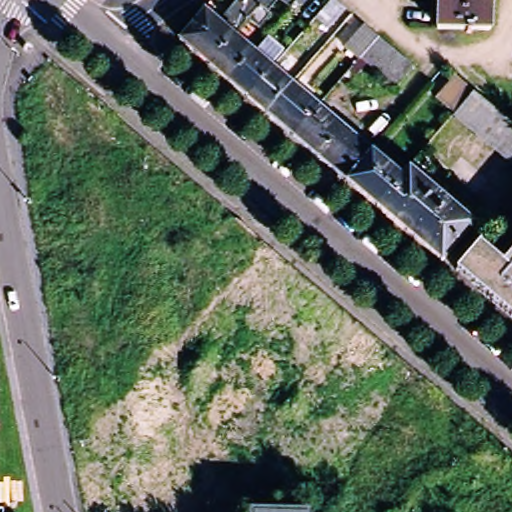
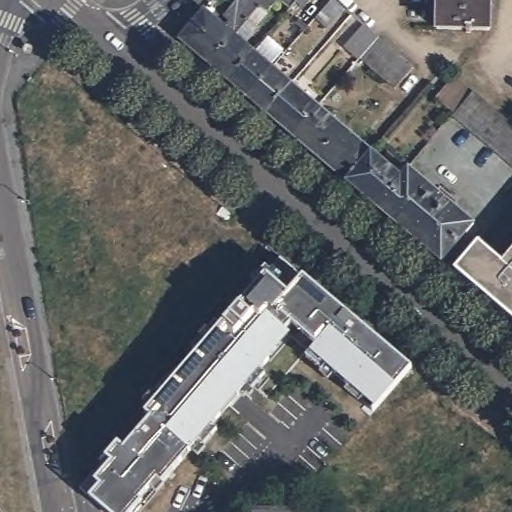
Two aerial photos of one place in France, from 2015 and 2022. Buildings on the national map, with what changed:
unchanged [(234,34),(225,45),(208,64),(191,50),(178,39),(198,15),(204,8),(224,25),(229,19),(223,14),(235,0),(275,0),(266,11),(269,14),(256,29),(246,20),(234,34)]
unchanged [(296,1),(289,9),(278,0),(306,0),(301,5),(296,1)]
unchanged [(314,17),(328,0),(335,0),(344,8),(327,28),(314,17)]
unchanged [(470,33),(466,32),(466,29),(436,27),(437,0),(489,0),(488,29),(470,29),(470,33)]
unchanged [(349,56),(348,59),(334,47),(353,24),(367,35),(402,65),(384,86),(349,56)]
unchanged [(228,81),(208,64),(225,45),(234,34),(254,50),(273,66),(291,82),(265,113),(246,96),(228,81)]
unchanged [(429,98),(449,74),(468,90),(509,126),(512,129),(512,168),(448,114),(429,98)]
unchanged [(265,113),(291,82),(318,104),(291,135),(265,113)]
unchanged [(291,135),(318,104),(371,149),(344,180),(291,135)]
unchanged [(344,180),(371,149),(401,175),(374,205),(344,180)]
unchanged [(374,205),(401,175),(407,168),(472,223),(439,260),(374,205)]
unchanged [(476,243),(499,263),(512,249),(512,319),(453,269),(476,243)]
new [(100,509),(103,507),(92,498),(81,488),(106,456),(113,448),(118,443),(123,449),(146,422),(151,417),(146,411),(280,256),(296,269),(279,287),(286,293),(292,286),(301,275),(313,284),(411,369),(369,417),(361,409),(364,407),(360,403),(363,400),(307,351),(314,343),(291,322),(284,331),(290,338),(249,383),(241,391),(228,407),(159,485),(154,481),(128,512),(129,512),(104,512),(100,509)]
new [(279,383),(266,398),(249,383),(290,338),(284,331),(291,322),(314,343),(307,351),(279,383)]
new [(154,481),(158,484),(143,502),(145,503),(138,512),(129,512),(128,512),(154,481)]

